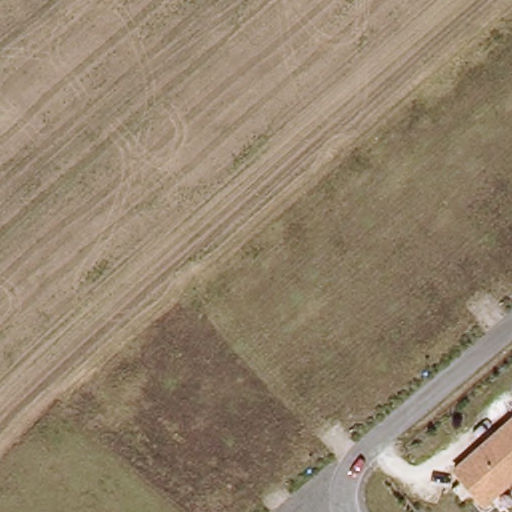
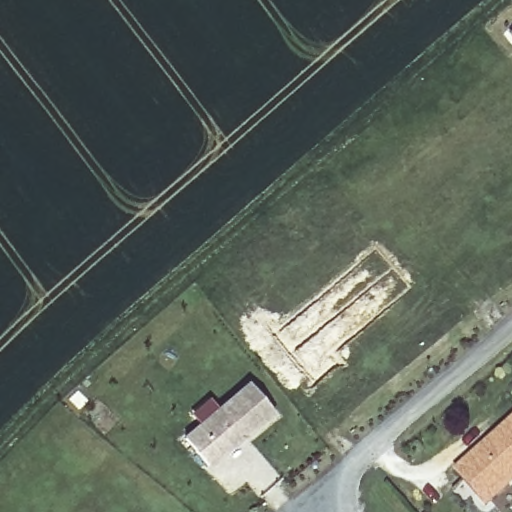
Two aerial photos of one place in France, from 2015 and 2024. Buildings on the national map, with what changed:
new [(244,384),(268,415),(215,459),(214,457),(202,466),(179,438),(244,384)]
unchanged [(446,472),(512,415),(512,476),(477,507),(446,472)]

